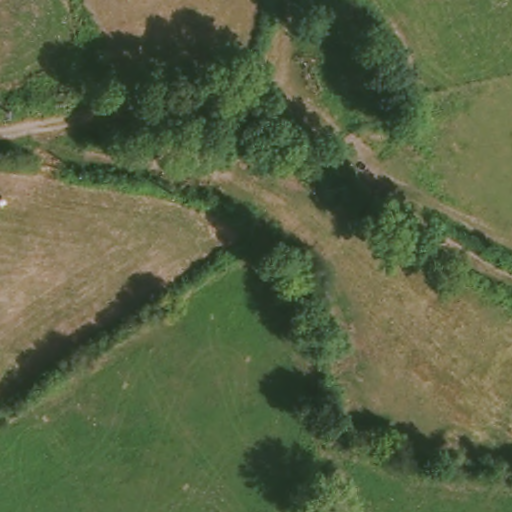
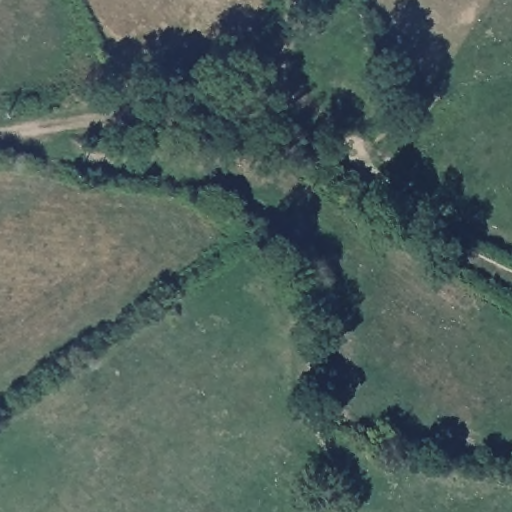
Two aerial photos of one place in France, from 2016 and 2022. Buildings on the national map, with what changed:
unchanged [(196,42),(213,24),(229,37),(212,57),(196,42)]

